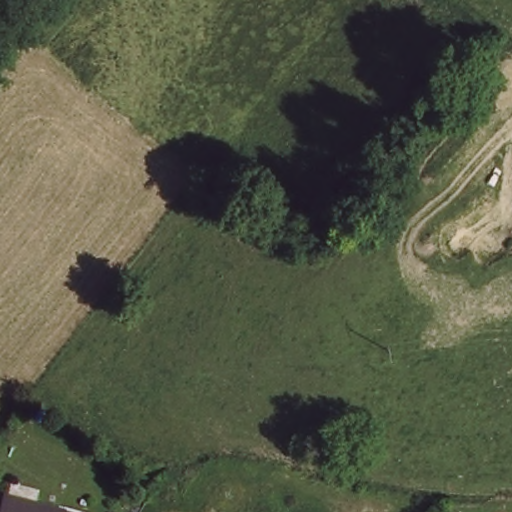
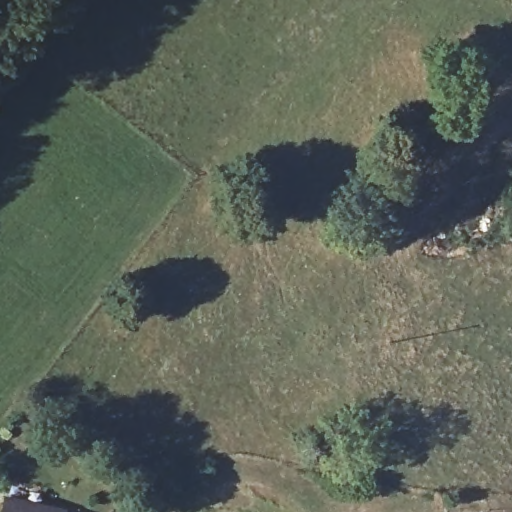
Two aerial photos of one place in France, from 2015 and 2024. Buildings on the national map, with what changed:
unchanged [(9,499),(61,512),(6,512),(9,499)]

